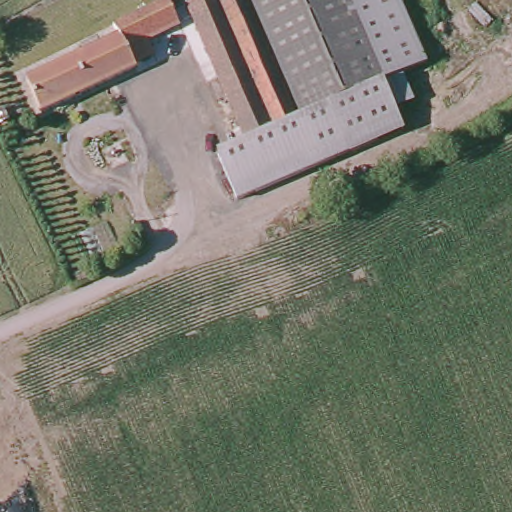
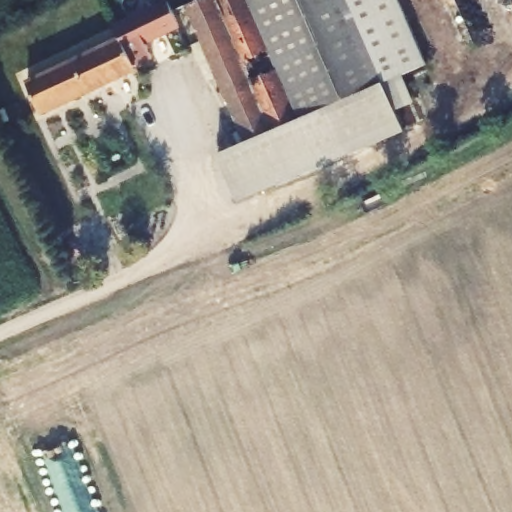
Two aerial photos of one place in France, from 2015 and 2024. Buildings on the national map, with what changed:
unchanged [(238,201),(215,150),(243,139),(184,4),(195,0),(399,0),(426,64),(425,64),(384,82),(404,129),(238,201)]
unchanged [(188,34),(156,50),(161,62),(139,72),(141,77),(53,122),(30,75),(174,4),(188,34)]

